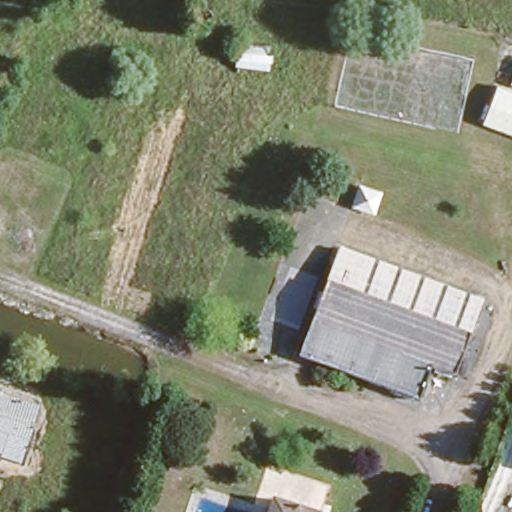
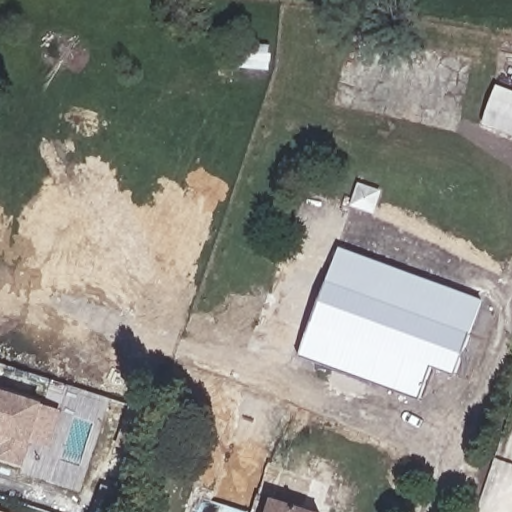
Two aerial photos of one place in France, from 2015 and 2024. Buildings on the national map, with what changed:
unchanged [(232,66),(237,40),(272,46),(270,73),(232,66)]
unchanged [(492,84),(484,80),(492,59),(512,64),(512,131),(481,121),(492,84)]
unchanged [(473,369),(460,364),(430,354),(416,391),(296,352),(330,242),(487,292),(496,294),(473,369)]
new [(44,403),(31,444),(25,466),(0,459),(0,446),(1,444),(0,444),(0,389),(44,403)]
unchanged [(317,509),(316,512),(263,512),(268,494),(317,509)]

